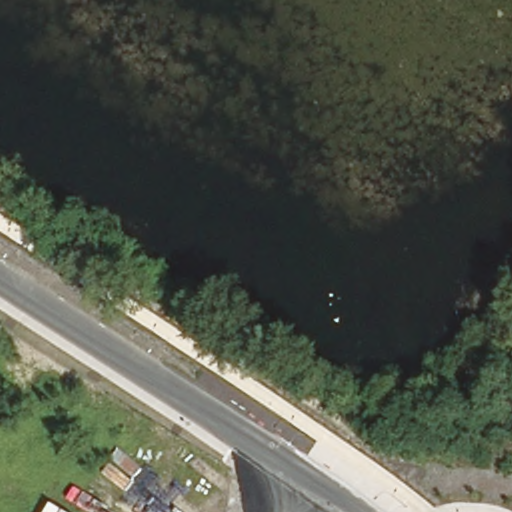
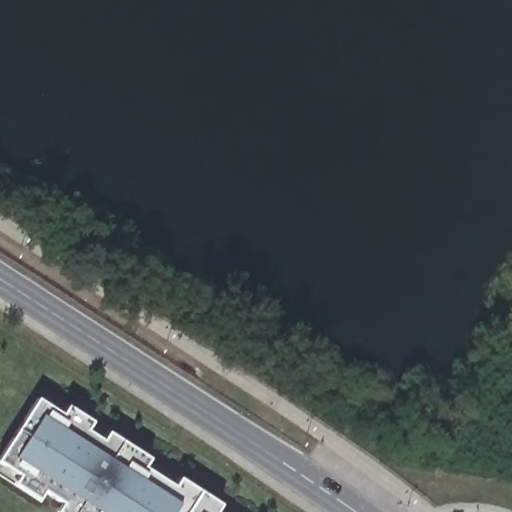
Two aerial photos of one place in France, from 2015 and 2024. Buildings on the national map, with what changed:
new [(56,512),(61,504),(44,492),(38,500),(12,483),(17,475),(0,464),(0,453),(37,397),(61,413),(66,405),(91,421),(86,430),(101,440),(107,432),(149,459),(144,467),(173,486),(179,477),(221,505),(217,512),(56,512)]

